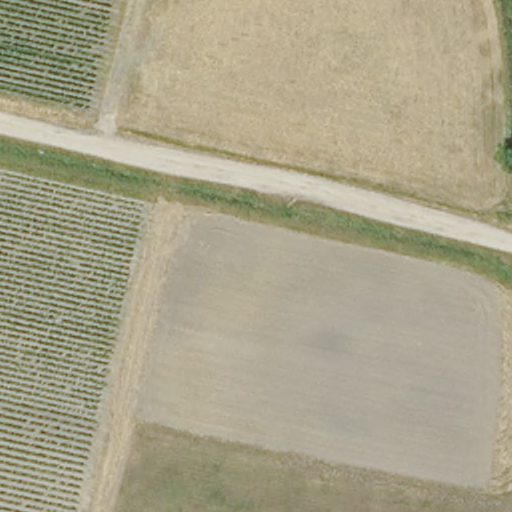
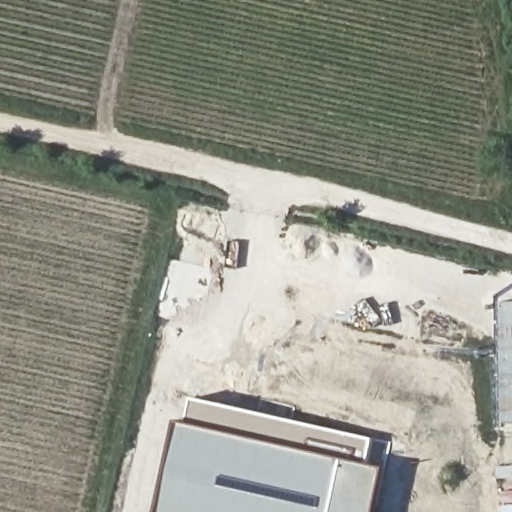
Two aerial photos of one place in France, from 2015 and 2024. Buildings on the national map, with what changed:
new [(191,423),(196,396),(379,438),(373,463),(389,467),(379,512),(158,512),(180,421),(191,423)]

